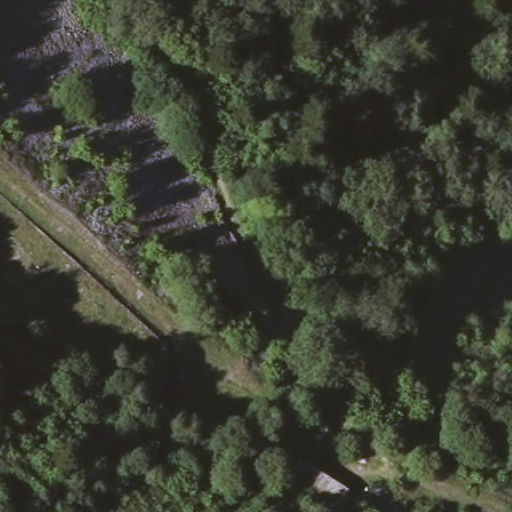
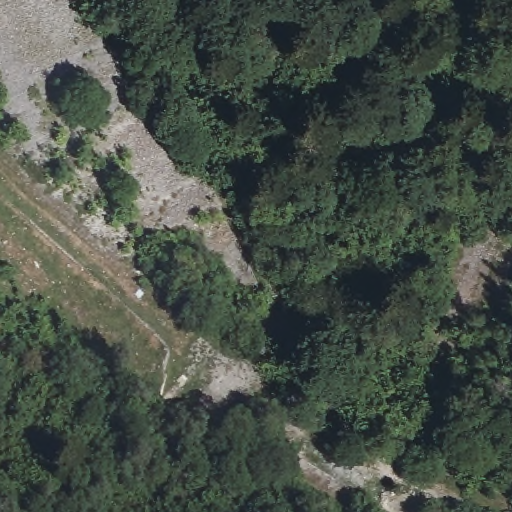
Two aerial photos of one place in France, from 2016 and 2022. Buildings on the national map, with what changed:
unchanged [(322,472),(347,488),(333,510),(284,472),(298,454),(322,472)]

